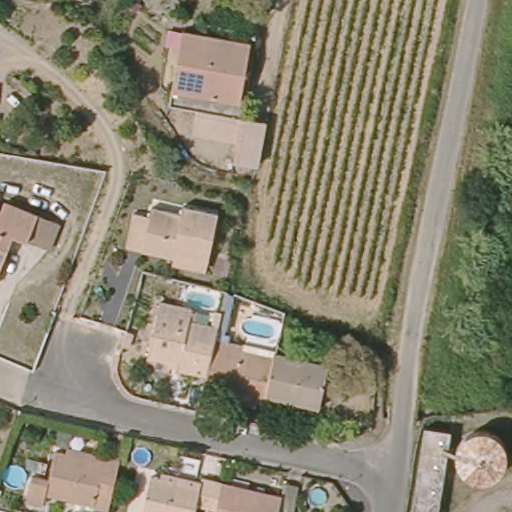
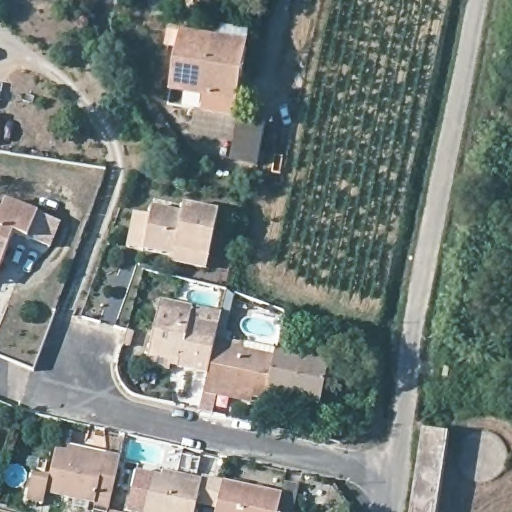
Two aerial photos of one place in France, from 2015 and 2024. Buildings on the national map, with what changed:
unchanged [(169,91),(179,33),(216,39),(246,44),(245,52),(235,104),(169,91)]
unchanged [(236,162),(239,145),(196,138),(199,110),(269,123),(260,167),(236,162)]
unchanged [(189,260),(190,253),(137,243),(143,208),(162,211),(164,200),(193,206),(194,199),(230,206),(222,251),(219,265),(189,260)]
unchanged [(38,216),(58,223),(47,252),(27,244),(12,239),(0,267),(0,206),(2,202),(38,216)]
unchanged [(172,354),(147,347),(160,298),(192,306),(188,318),(219,326),(216,339),(207,374),(177,365),(169,363),(172,354)]
unchanged [(207,374),(216,339),(282,353),(274,390),(273,397),(204,384),(207,374)]
unchanged [(282,353),(282,348),(335,361),(326,405),(274,390),(282,353)]
unchanged [(459,435),(470,431),(485,429),(502,437),(507,451),(502,467),(493,476),(479,479),(469,479),(452,473),(443,471),(435,512),(409,512),(422,425),(445,430),(459,435)]
unchanged [(27,497),(32,469),(54,475),(61,448),(72,452),(75,444),(109,453),(125,458),(115,500),(100,495),(97,503),(60,494),(50,491),(47,502),(27,497)]
unchanged [(202,483),(205,470),(227,475),(219,509),(197,505),(197,512),(141,512),(148,471),(202,483)]
unchanged [(227,475),(287,489),(284,505),(299,508),(298,512),(218,512),(219,509),(227,475)]
unchanged [(91,512),(91,510),(99,512),(91,512)]

